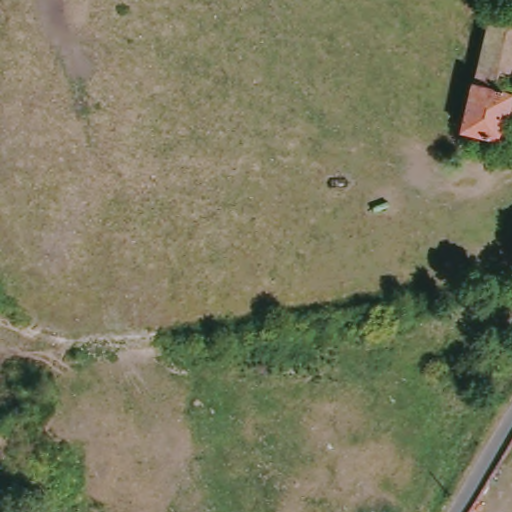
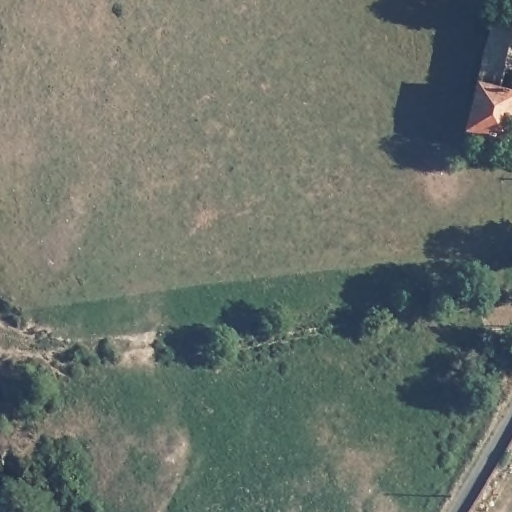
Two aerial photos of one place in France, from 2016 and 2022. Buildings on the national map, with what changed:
unchanged [(497,16),(512,21),(512,132),(508,145),(470,134),(497,16)]

